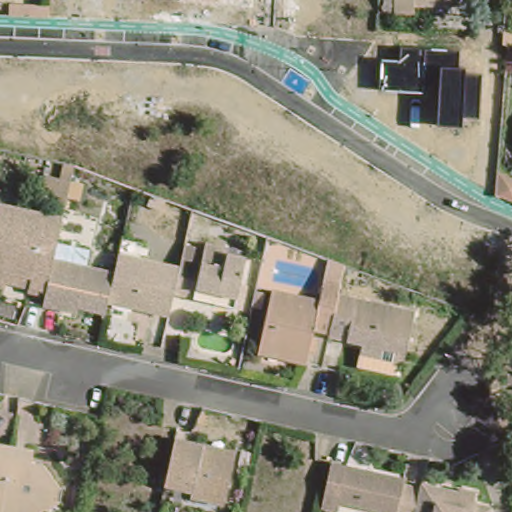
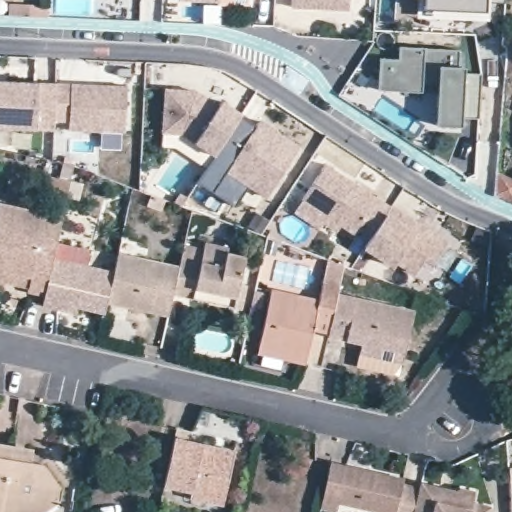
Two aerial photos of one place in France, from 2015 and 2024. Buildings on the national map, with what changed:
unchanged [(178,0),(220,0),(220,2),(178,0)]
new [(292,9),(292,0),(348,0),(348,11),(292,9)]
unchanged [(458,0),(458,6),(412,6),(412,13),(393,13),(382,13),(382,0),(458,0)]
unchanged [(48,5),(47,18),(8,16),(8,4),(48,5)]
unchanged [(380,59),(399,61),(400,47),(459,49),(458,67),(464,67),(463,71),(481,73),(479,118),(462,117),(461,126),(437,125),(438,94),(382,91),(380,59)]
unchanged [(512,50),(512,73),(503,76),(506,47),(512,50)]
unchanged [(54,121),(54,131),(0,129),(0,82),(56,84),(54,121)]
unchanged [(56,84),(56,83),(112,86),(110,132),(69,130),(69,122),(54,121),(56,84)]
new [(166,88),(199,87),(223,103),(225,101),(242,112),(240,115),(215,155),(183,135),(162,134),(166,88)]
new [(215,155),(240,115),(255,125),(258,121),(300,148),(268,197),(250,186),(235,207),(197,182),(215,155)]
new [(325,165),(390,207),(390,208),(372,236),(360,228),(355,235),(302,200),(325,165)]
unchanged [(512,179),(512,204),(493,197),(495,171),(512,179)]
unchanged [(66,198),(47,194),(41,193),(45,176),(52,177),(70,181),(66,198)]
unchanged [(52,259),(45,292),(27,288),(0,282),(0,203),(62,217),(52,259)]
new [(372,236),(390,208),(446,244),(433,264),(425,259),(415,274),(397,262),(393,267),(364,248),(372,236)]
unchanged [(207,302),(209,293),(195,290),(193,299),(172,294),(178,267),(181,258),(200,262),(205,243),(228,248),(227,253),(245,257),(236,299),(234,308),(207,302)]
unchanged [(107,303),(113,272),(117,254),(178,267),(172,294),(168,316),(150,312),(136,309),(107,303)]
unchanged [(58,310),(42,306),(45,292),(52,259),(113,272),(107,303),(105,314),(77,308),(76,314),(58,310)]
unchanged [(257,354),(258,349),(272,290),(318,300),(322,281),(339,284),(337,294),(328,333),(312,330),(306,359),(305,365),(257,354)]
unchanged [(359,355),(362,345),(327,337),(328,333),(337,294),(413,311),(404,354),(402,364),(359,355)]
unchanged [(190,499),(190,493),(163,487),(174,438),(202,444),(235,452),(233,456),(223,500),(222,506),(190,499)]
unchanged [(0,446),(11,448),(0,512),(0,446)]
unchanged [(62,489),(60,501),(58,500),(42,512),(0,512),(11,448),(32,451),(30,462),(43,465),(60,489),(62,489)]
unchanged [(320,509),(322,499),(330,463),(403,480),(402,485),(396,512),(374,512),(338,503),(337,512),(334,512),(320,509)]
unchanged [(475,492),(472,504),(490,508),(490,512),(396,512),(402,485),(420,489),(422,485),(440,489),(455,492),(460,489),(475,492)]

